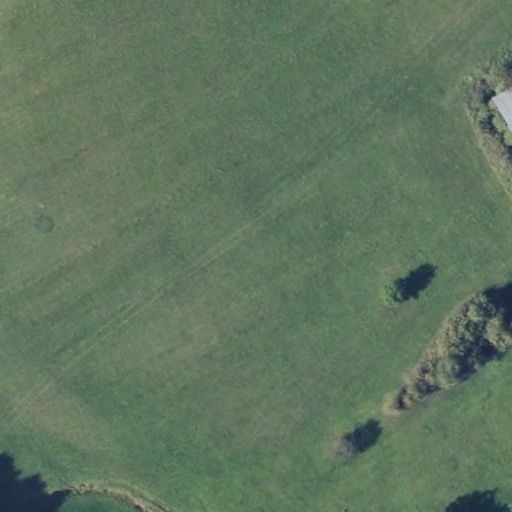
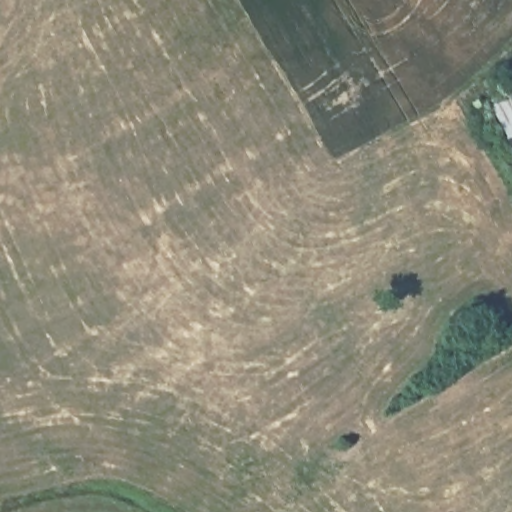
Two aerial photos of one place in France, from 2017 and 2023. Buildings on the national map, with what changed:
unchanged [(512,92),(512,134),(494,102),(512,92)]

